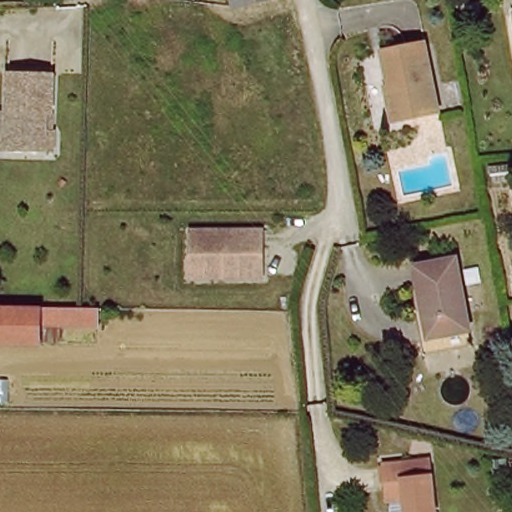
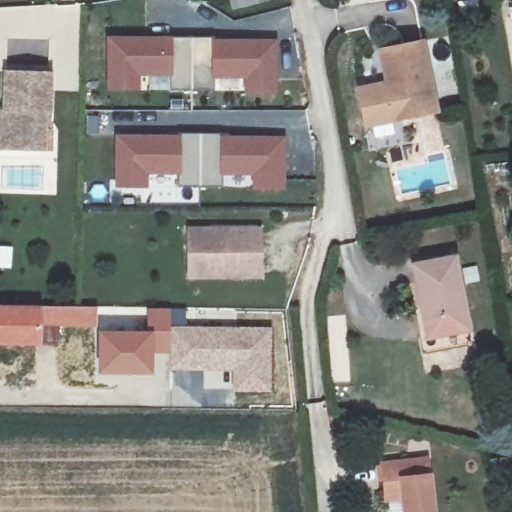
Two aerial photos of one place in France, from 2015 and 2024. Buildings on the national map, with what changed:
unchanged [(236,6),(234,0),(267,0),(236,6)]
new [(105,42),(165,43),(165,40),(188,40),(187,94),(165,94),(165,76),(132,76),(132,91),(105,90),(105,42)]
new [(188,40),(210,41),(210,46),(270,46),(269,95),(242,94),(242,79),(210,79),(209,94),(187,94),(188,40)]
unchanged [(383,86),(375,49),(418,40),(433,110),(397,117),(389,119),(383,86)]
unchanged [(53,71),(47,146),(0,151),(0,128),(13,65),(53,71)]
new [(113,141),(173,142),(173,137),(196,137),(195,181),(173,181),(173,166),(140,166),(140,181),(113,180),(113,141)]
new [(196,137),(218,137),(218,142),(269,142),(278,143),(277,182),(250,182),(250,167),(218,167),(218,182),(195,181),(196,137)]
unchanged [(194,253),(194,235),(268,234),(267,281),(209,280),(194,280),(194,253)]
unchanged [(431,353),(429,335),(415,263),(457,256),(470,327),(474,346),(431,353)]
unchanged [(0,341),(0,309),(43,309),(99,309),(100,320),(43,320),(44,341),(0,341)]
new [(233,391),(233,372),(171,370),(171,327),(274,329),(273,393),(233,391)]
unchanged [(439,512),(414,512),(413,494),(396,495),(392,458),(435,456),(439,512)]

